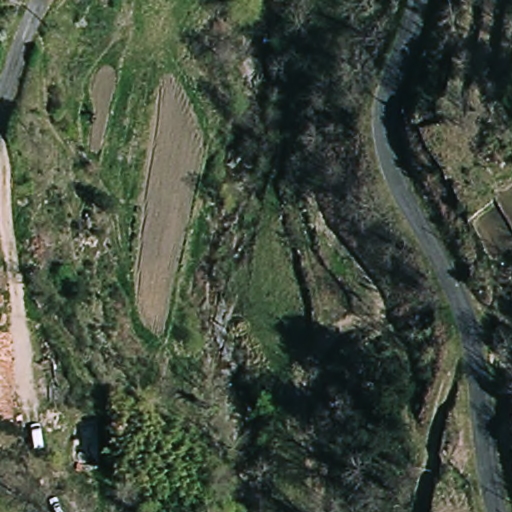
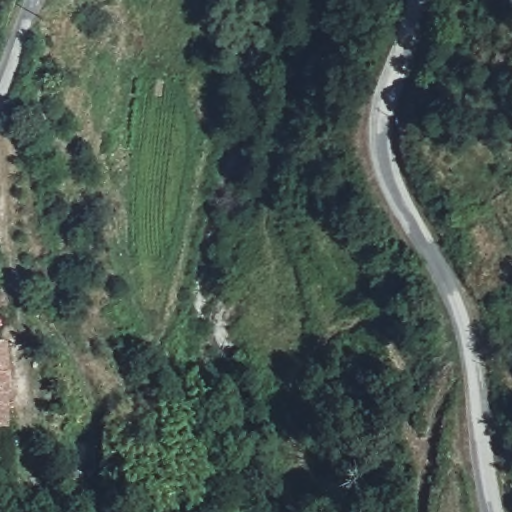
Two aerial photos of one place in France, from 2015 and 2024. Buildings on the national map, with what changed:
unchanged [(10,427),(0,428),(0,342),(8,342),(10,427)]

